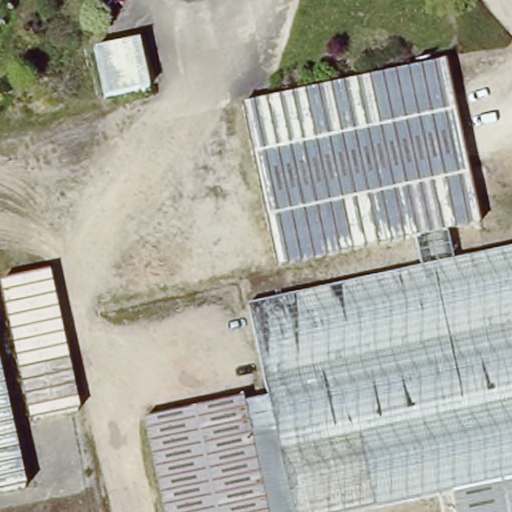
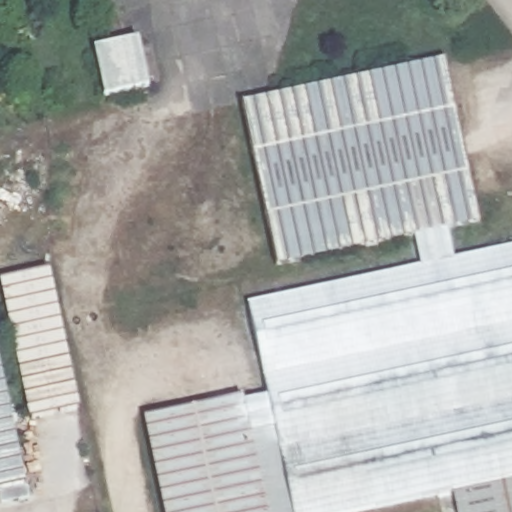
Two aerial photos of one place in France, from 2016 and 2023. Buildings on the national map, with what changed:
unchanged [(101,96),(94,51),(134,42),(144,88),(101,96)]
unchanged [(254,88),(444,59),(448,79),(259,116),(254,88)]
unchanged [(473,219),(441,226),(446,272),(512,268),(512,512),(440,512),(438,500),(372,512),(159,512),(142,424),(260,398),(241,311),(410,280),(399,231),(282,252),(259,116),(448,79),(473,219)]
unchanged [(45,294),(64,418),(24,421),(4,299),(45,294)]
unchanged [(19,489),(0,492),(0,377),(19,489)]

